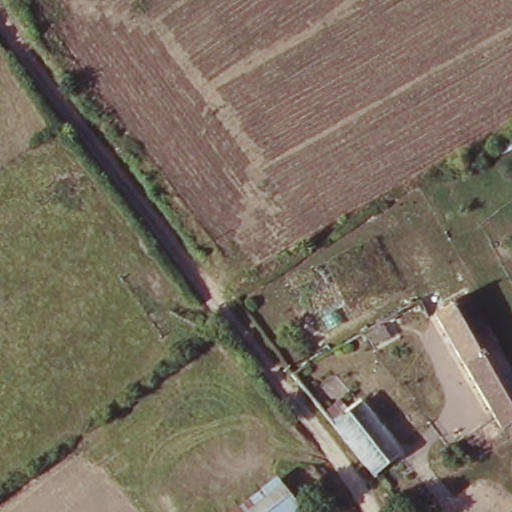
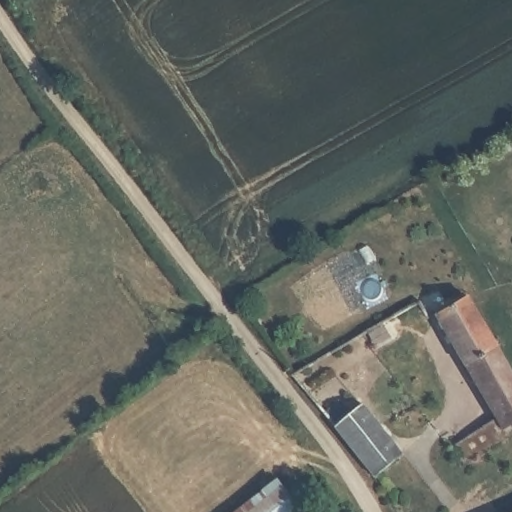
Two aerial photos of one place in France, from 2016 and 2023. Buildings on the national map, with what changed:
unchanged [(508,434),(464,467),(450,448),(495,415),(429,317),(462,295),(512,368),(512,419),(501,426),(508,434)]
unchanged [(353,403),(401,459),(376,483),(328,427),(353,403)]
unchanged [(276,481),(281,487),(307,470),(329,499),(312,512),(235,512),(276,481)]

